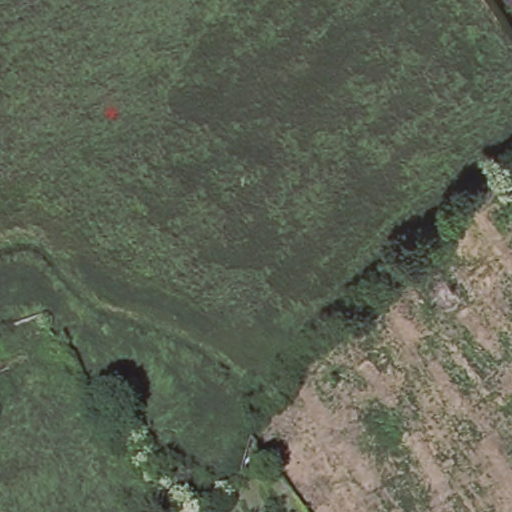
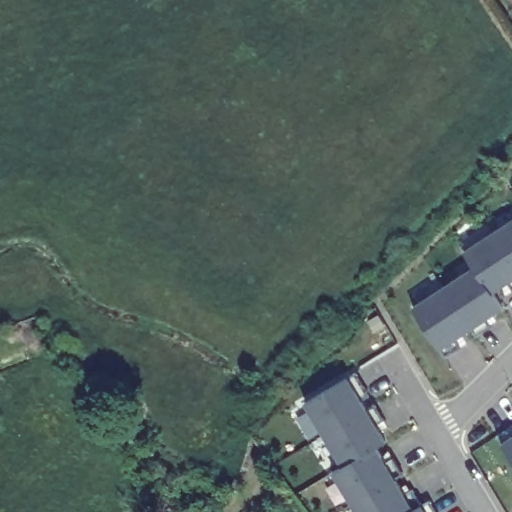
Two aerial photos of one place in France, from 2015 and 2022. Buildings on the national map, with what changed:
new [(512,256),(496,231),(512,220),(512,256)]
new [(512,256),(512,290),(507,282),(492,293),(474,267),(464,251),(496,231),(512,256)]
new [(474,267),(492,293),(503,308),(487,318),(492,326),(476,337),(470,329),(471,328),(444,287),(474,267)]
new [(444,287),(471,328),(470,329),(456,338),(461,346),(445,357),(413,308),(444,287)]
new [(356,372),(366,388),(357,393),(366,408),(366,409),(324,435),(305,402),(356,372)]
new [(366,409),(366,408),(374,403),(384,420),(376,425),(386,441),(376,447),(343,466),(324,435),(366,409)]
new [(512,459),(497,435),(512,425),(512,459)]
new [(343,466),(376,447),(385,463),(394,458),(403,474),(395,479),(394,478),(352,503),(333,471),(343,466)]
new [(394,478),(395,479),(404,494),(413,489),(422,505),(411,512),(357,512),(352,503),(394,478)]
new [(422,505),(429,500),(436,512),(411,512),(422,505)]

